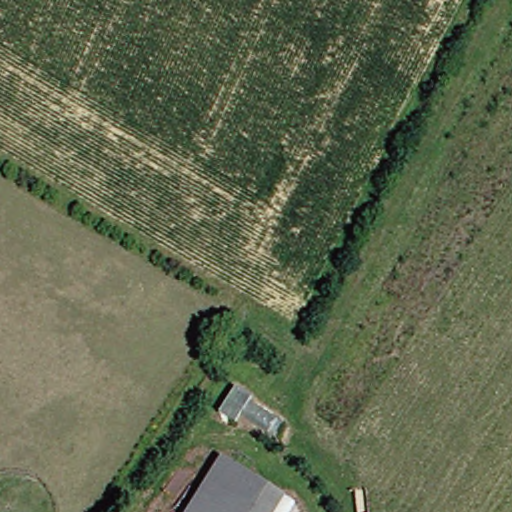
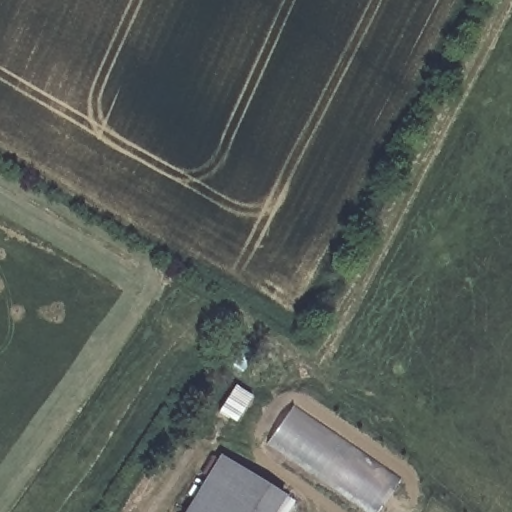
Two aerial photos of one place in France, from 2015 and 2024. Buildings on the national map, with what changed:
new [(366,512),(264,443),(291,403),(401,478),(378,512),(366,512)]
unchanged [(219,454),(282,495),(272,512),(246,512),(201,484),(219,454)]
unchanged [(246,512),(184,512),(201,484),(246,512)]

